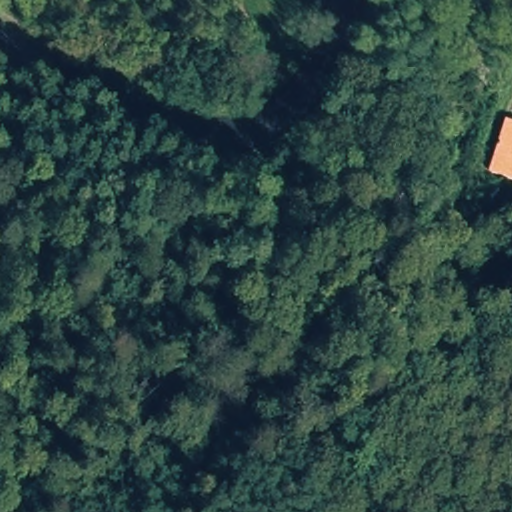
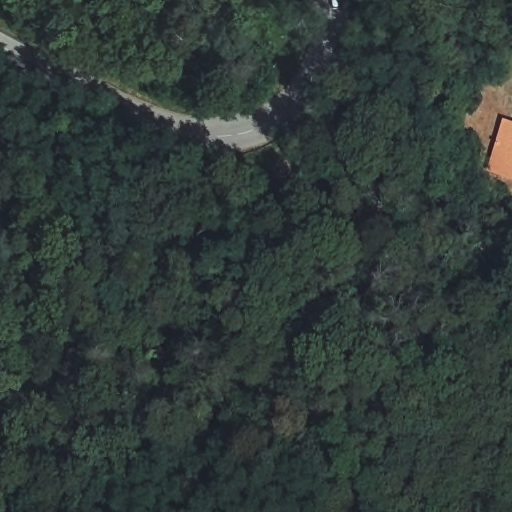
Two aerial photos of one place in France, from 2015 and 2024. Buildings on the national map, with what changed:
unchanged [(492,171),(508,117),(512,119),(512,180),(492,171)]

